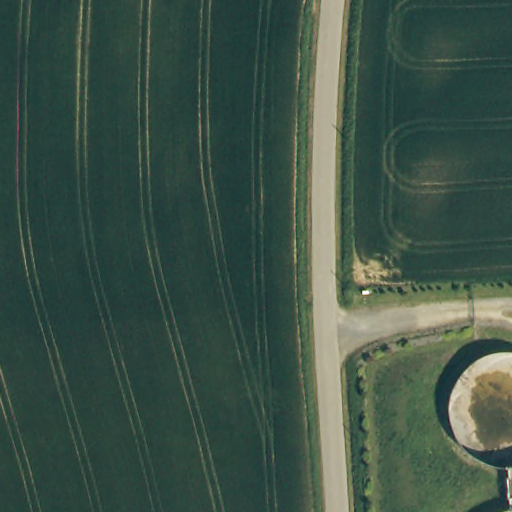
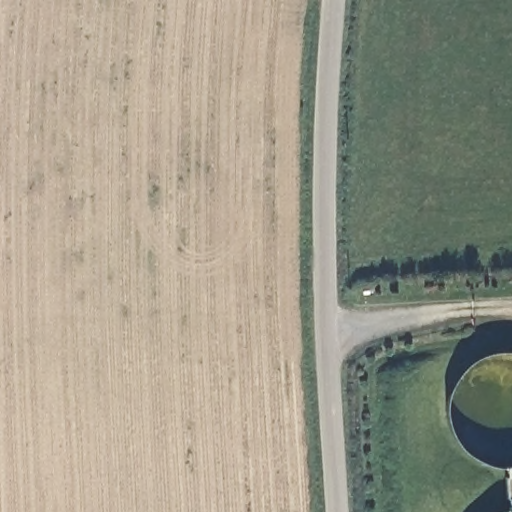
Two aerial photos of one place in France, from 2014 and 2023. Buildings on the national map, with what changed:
unchanged [(512,499),(504,500),(503,478),(512,477),(512,499)]

